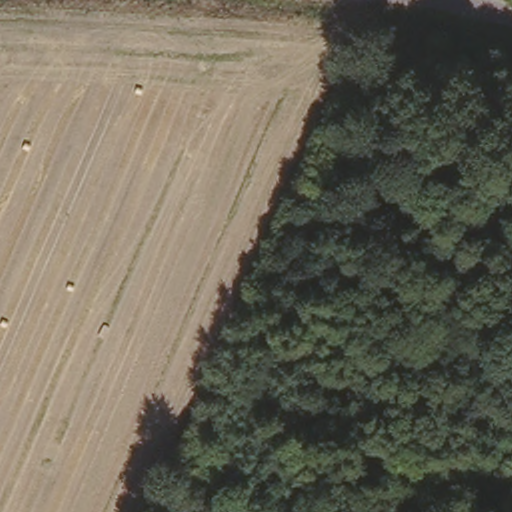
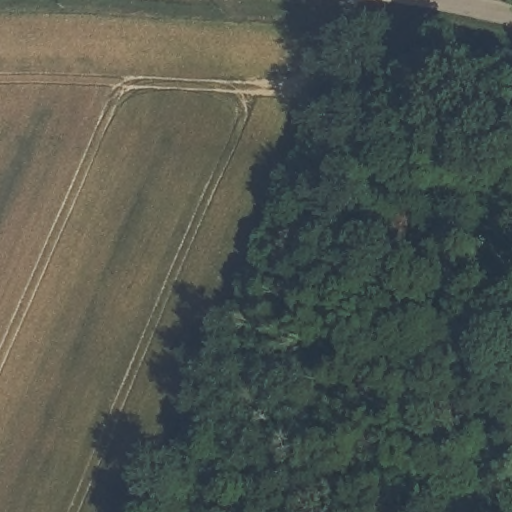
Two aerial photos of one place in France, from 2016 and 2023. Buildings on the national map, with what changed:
[]

